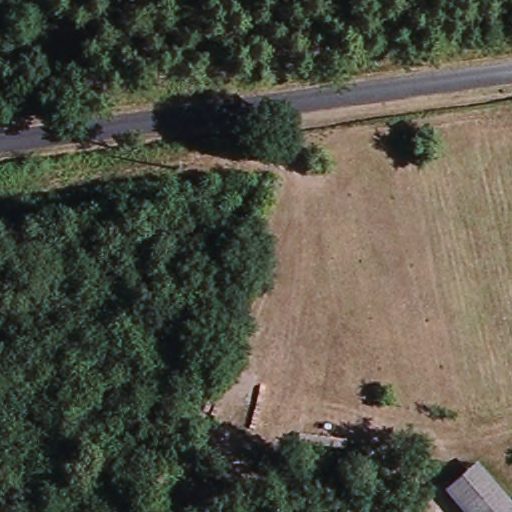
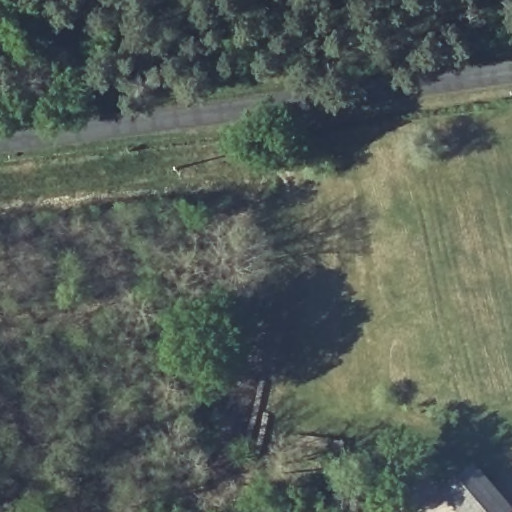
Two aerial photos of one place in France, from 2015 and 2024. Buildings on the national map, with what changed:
unchanged [(508,512),(455,512),(440,496),(470,470),(508,512)]

